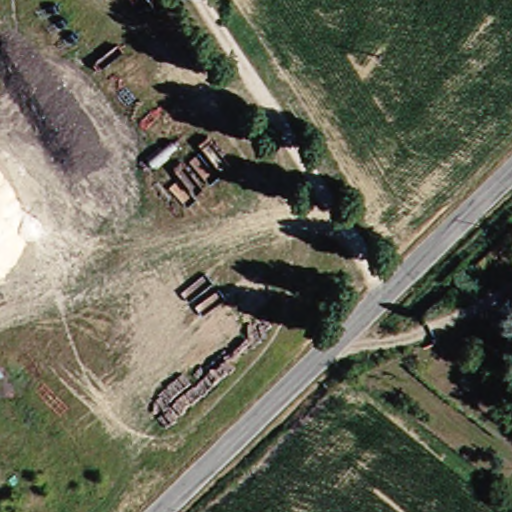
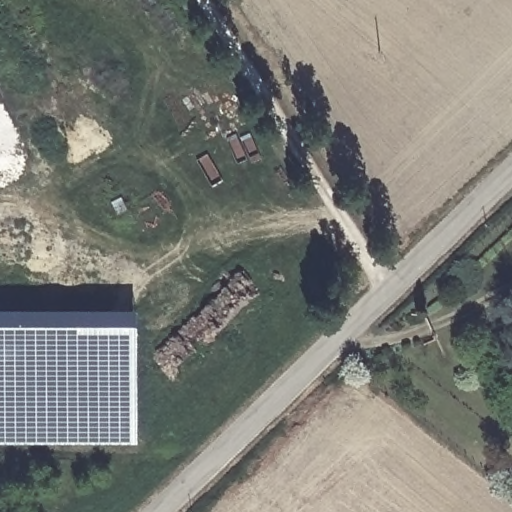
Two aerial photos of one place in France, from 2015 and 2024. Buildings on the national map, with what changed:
new [(138,445),(0,445),(0,312),(138,312),(138,445)]

